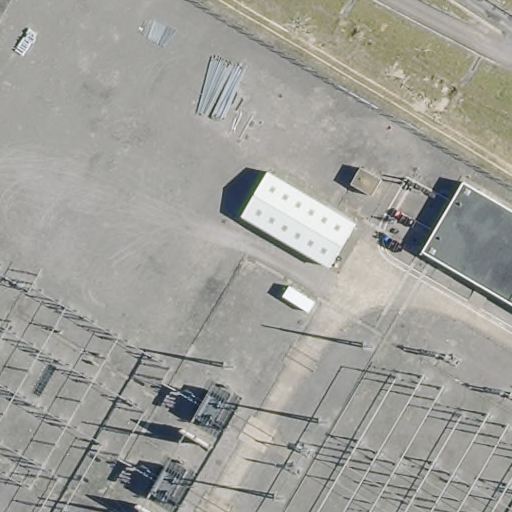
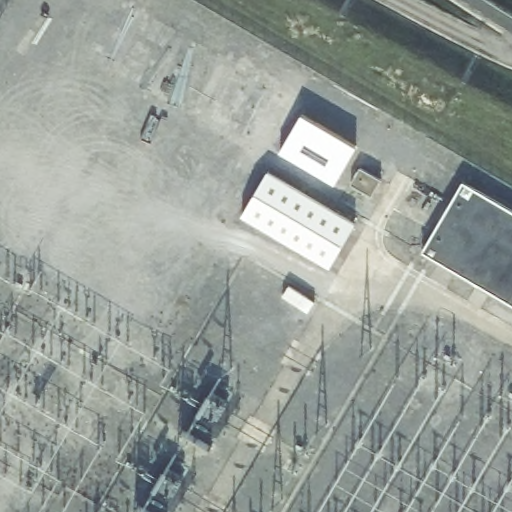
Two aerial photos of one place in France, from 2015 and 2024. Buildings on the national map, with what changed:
new [(356,147),(332,187),(277,154),(301,114),(356,147)]
unchanged [(357,224),(332,268),(245,218),(271,174),(357,224)]
unchanged [(463,182),(512,211),(512,305),(422,252),(463,182)]

